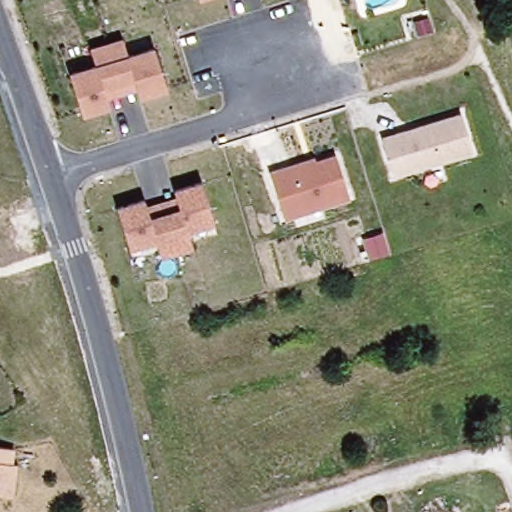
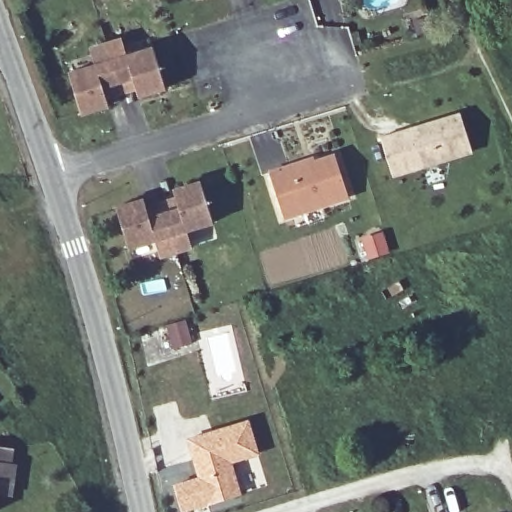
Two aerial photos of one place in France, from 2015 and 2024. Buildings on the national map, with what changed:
unchanged [(196,0),(200,0),(196,1),(196,0)]
unchanged [(152,45),(166,90),(136,100),(131,84),(105,93),(108,108),(81,116),(66,72),(94,63),(87,48),(122,38),(126,53),(152,45)]
unchanged [(472,154),(392,177),(380,135),(457,111),(472,154)]
unchanged [(350,200),(282,220),(267,168),(313,154),(314,159),(335,153),(350,200)]
unchanged [(146,207),(173,197),(172,187),(200,177),(216,222),(186,230),(191,250),(158,260),(153,240),(125,248),(113,206),(142,197),(146,207)]
new [(249,419),(260,455),(233,463),(242,496),(186,512),(183,512),(175,484),(196,477),(185,438),(249,419)]
unchanged [(8,464),(13,463),(9,498),(0,497),(0,447),(10,449),(8,464)]

